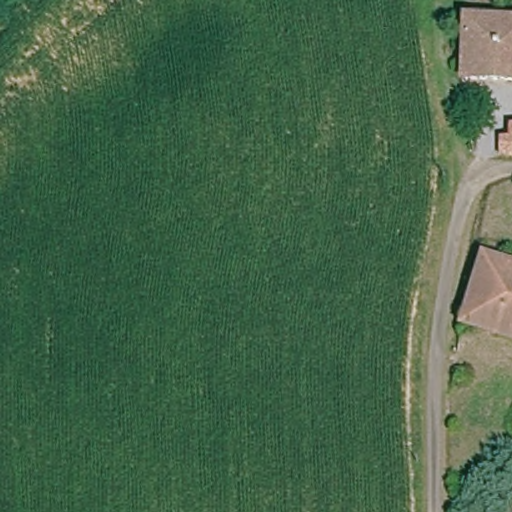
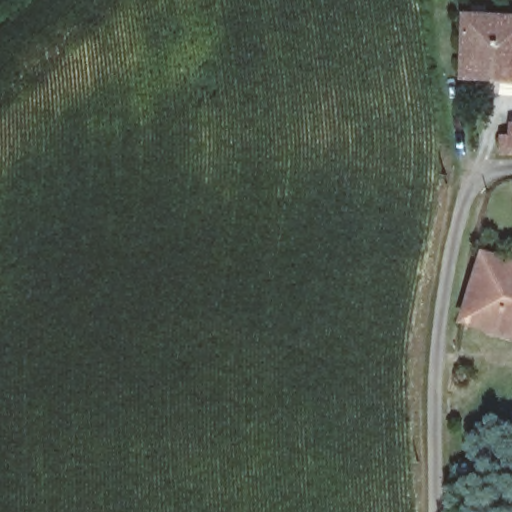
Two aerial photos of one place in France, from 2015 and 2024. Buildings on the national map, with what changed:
unchanged [(512,80),(459,76),(466,15),(512,18),(512,80)]
unchanged [(512,138),(512,151),(506,150),(508,137),(512,138)]
unchanged [(512,340),(461,325),(481,260),(512,269),(512,340)]
unchanged [(512,512),(504,512),(512,484),(512,512)]

